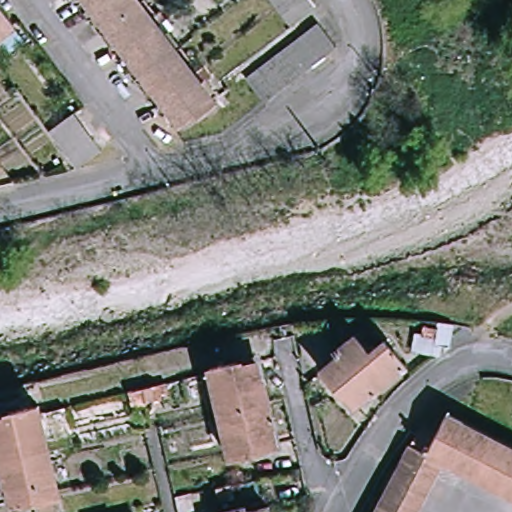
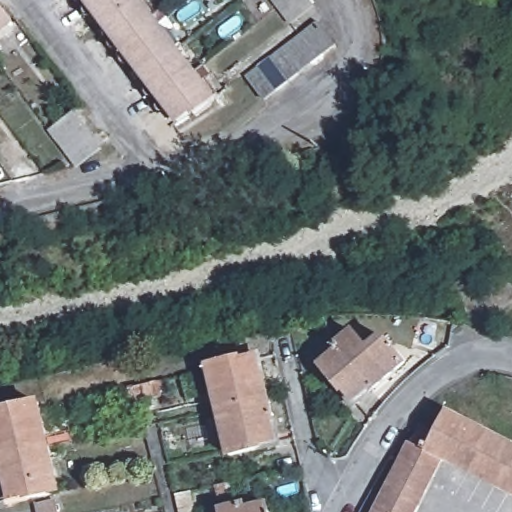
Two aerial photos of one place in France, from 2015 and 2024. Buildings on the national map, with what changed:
unchanged [(90,0),(138,0),(108,24),(90,0)]
unchanged [(126,47),(108,24),(138,0),(142,0),(159,22),(126,47)]
unchanged [(278,0),(314,0),(317,4),(295,21),(286,11),(278,0)]
unchanged [(15,24),(0,35),(0,5),(15,24)]
unchanged [(273,57),(284,48),(294,40),(296,39),(309,29),(321,20),(338,43),(327,51),(313,62),(302,71),(290,80),(278,89),(267,97),(266,96),(250,75),(261,66),(273,57)]
unchanged [(217,99),(197,114),(195,110),(181,120),(126,47),(159,22),(217,99)]
unchanged [(65,136),(56,124),(79,105),(88,119),(97,130),(106,142),(85,157),(82,159),(74,148),(65,136)]
unchanged [(406,364),(371,390),(369,388),(354,400),(347,390),(340,391),(321,363),(341,347),(338,341),(357,327),(370,343),(383,332),(406,364)]
unchanged [(273,440),(262,442),(263,446),(230,453),(208,361),(255,348),(258,367),(263,367),(274,422),(270,424),(273,440)]
unchanged [(164,394),(132,403),(125,374),(157,365),(164,394)]
unchanged [(59,493),(13,502),(10,486),(4,486),(0,468),(0,408),(38,399),(59,493)]
unchanged [(512,439),(512,490),(446,456),(418,512),(376,512),(413,437),(420,440),(427,435),(433,438),(450,408),(512,439)]
unchanged [(220,508),(247,501),(249,510),(275,505),(276,512),(221,512),(220,508)]

